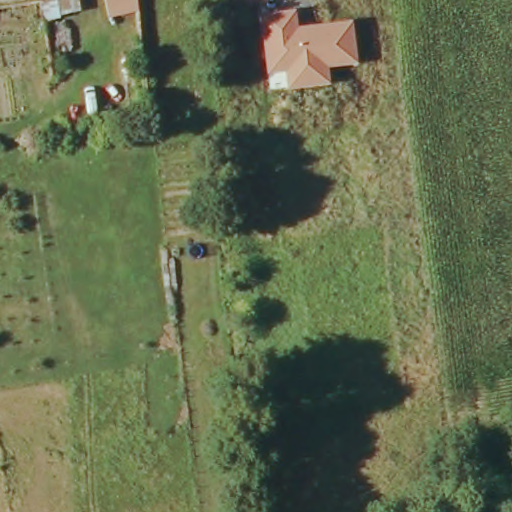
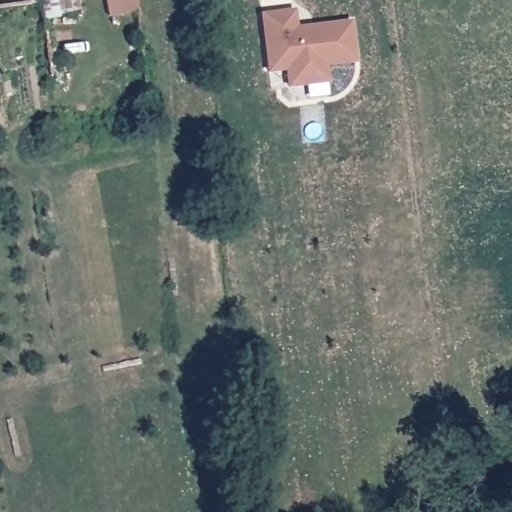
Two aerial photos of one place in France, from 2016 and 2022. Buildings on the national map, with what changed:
unchanged [(297,26),(353,21),(358,64),(329,67),(329,84),(287,89),(286,72),(268,74),(262,15),(296,9),(297,26)]

